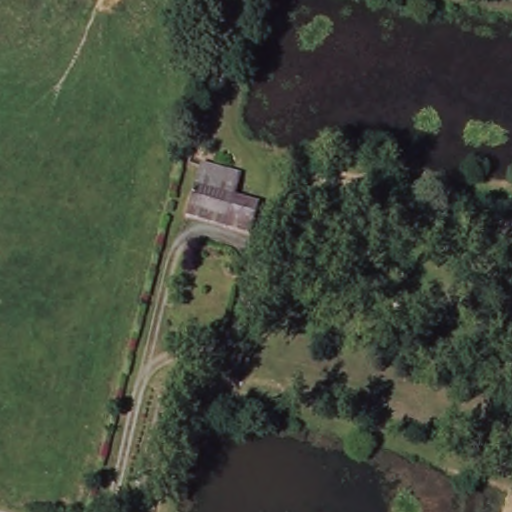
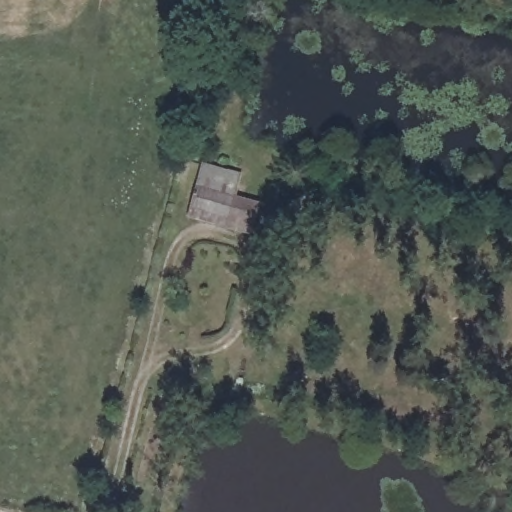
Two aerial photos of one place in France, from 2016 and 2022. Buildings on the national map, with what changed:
unchanged [(186,208),(191,187),(255,204),(250,224),(246,236),(183,220),(186,208)]

